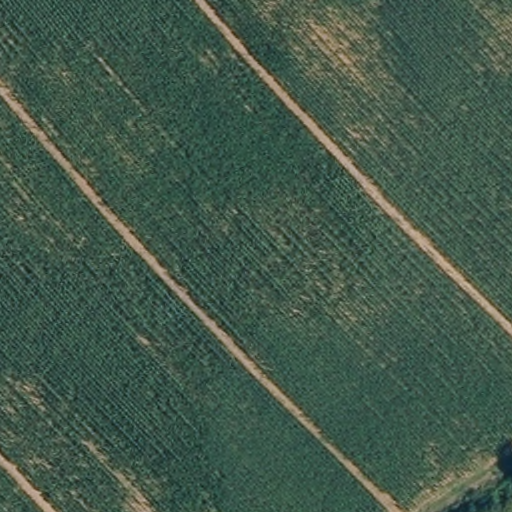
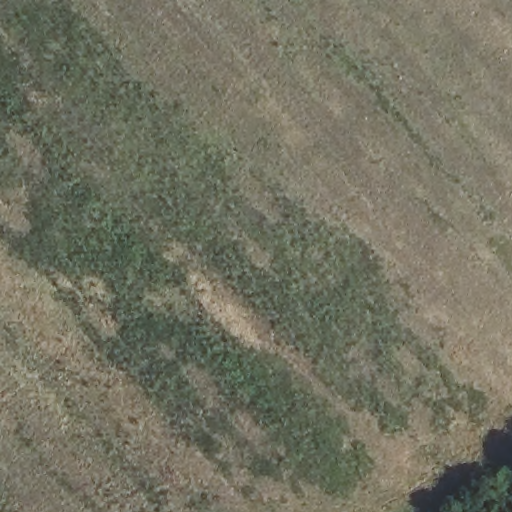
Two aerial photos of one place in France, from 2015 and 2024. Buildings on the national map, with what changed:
[]

